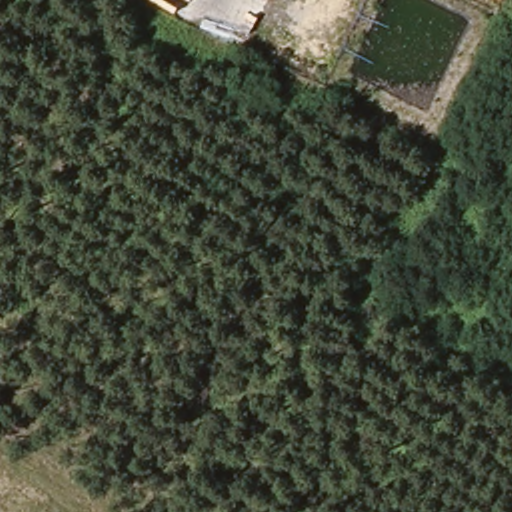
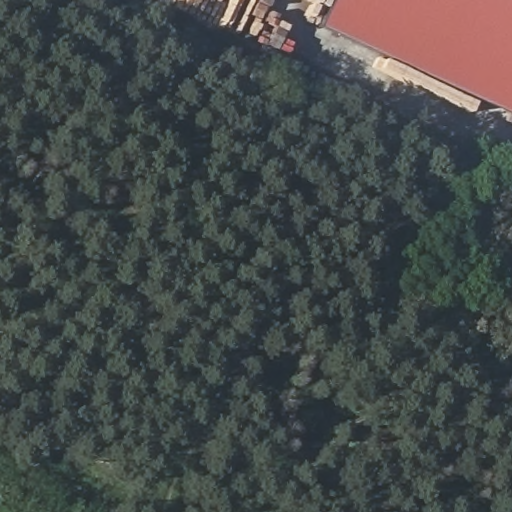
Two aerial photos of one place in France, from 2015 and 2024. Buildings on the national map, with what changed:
new [(317,28),(331,0),(512,0),(512,118),(317,28)]

